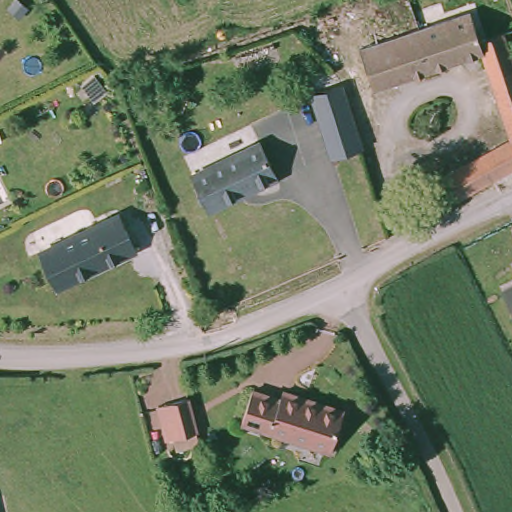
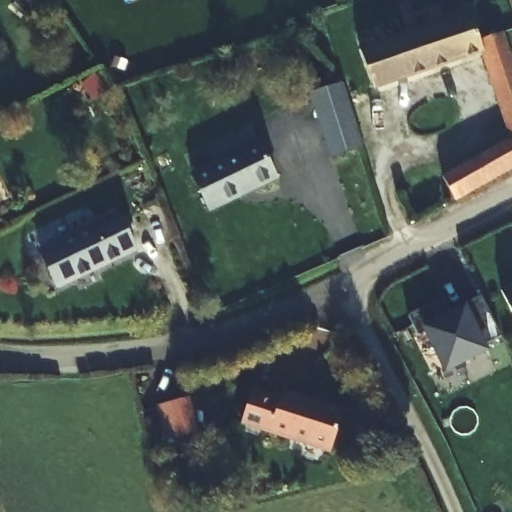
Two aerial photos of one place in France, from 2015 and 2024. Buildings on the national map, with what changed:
unchanged [(442,185),(507,145),(480,60),(370,95),(366,86),(356,52),(467,14),(476,41),(495,35),(512,81),(512,166),(451,201),(442,185)]
unchanged [(360,145),(331,153),(323,125),(321,117),(313,90),(342,82),(343,84),(360,145)]
unchanged [(267,173),(197,203),(183,167),(253,137),(267,173)]
unchanged [(115,210),(131,247),(53,283),(35,246),(115,210)]
unchanged [(498,291),(512,285),(512,310),(509,311),(498,291)]
new [(500,337),(481,346),(483,350),(443,370),(425,332),(416,336),(405,316),(432,302),(440,319),(480,300),(500,337)]
unchanged [(248,389),(276,397),(279,388),(341,408),(328,448),(237,420),(248,389)]
unchanged [(190,396),(197,430),(168,437),(160,403),(190,396)]

